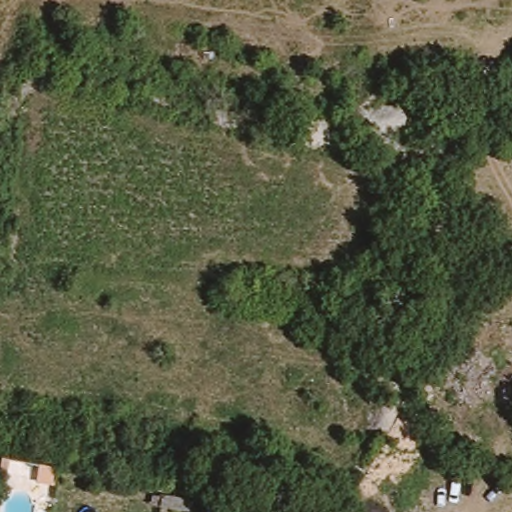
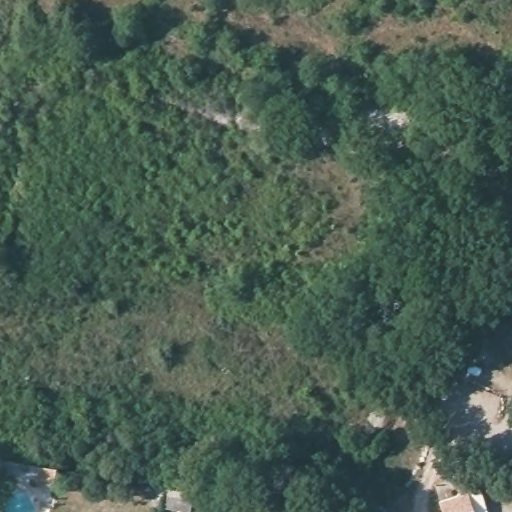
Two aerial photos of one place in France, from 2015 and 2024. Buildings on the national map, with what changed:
unchanged [(19,469),(35,471),(33,484),(19,481),(19,469)]
new [(469,491),(476,512),(445,512),(441,499),(469,491)]

